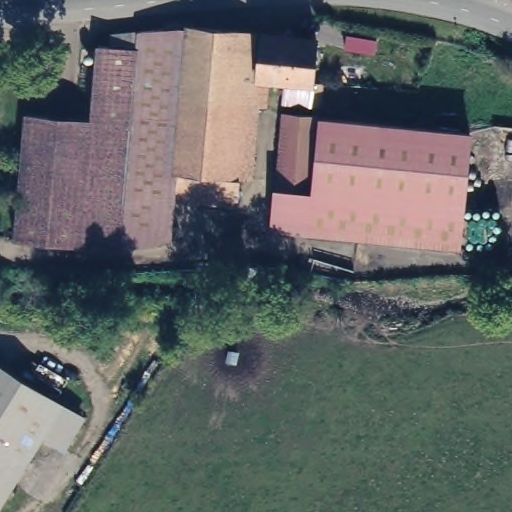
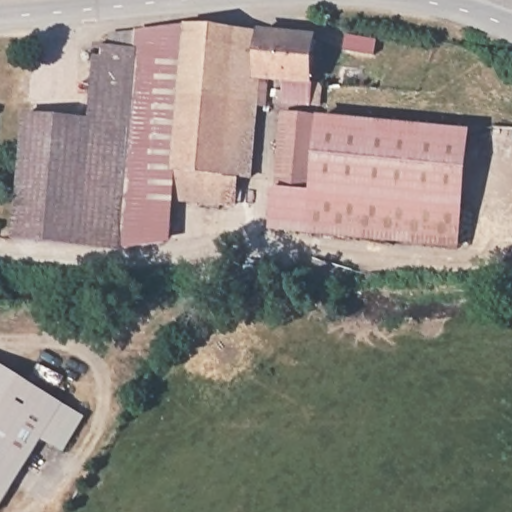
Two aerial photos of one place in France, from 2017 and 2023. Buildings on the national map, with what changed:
unchanged [(106,24),(298,30),(295,100),(246,100),(242,172),(125,166),(92,165),(100,36),(101,25),(106,24)]
unchanged [(92,165),(125,166),(124,240),(118,240),(22,239),(21,112),(88,111),(89,38),(100,36),(92,165)]
unchanged [(281,190),(282,174),(285,115),(295,115),(475,124),(468,199),(281,190)]
unchanged [(124,240),(125,166),(242,172),(240,204),(173,201),(171,242),(124,240)]
unchanged [(468,199),(466,248),(277,236),(281,190),(468,199)]
unchanged [(49,419),(1,497),(0,496),(0,358),(89,408),(75,432),(49,419)]

